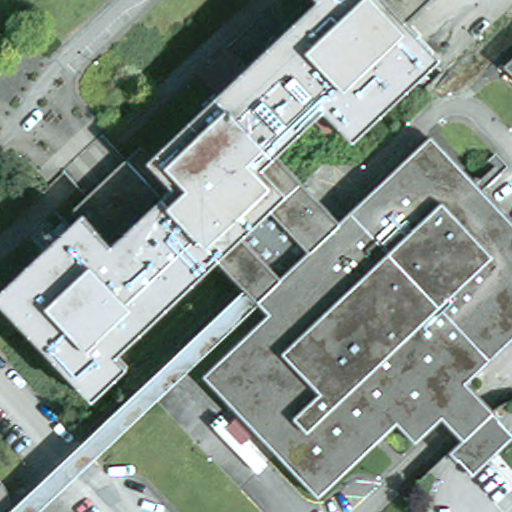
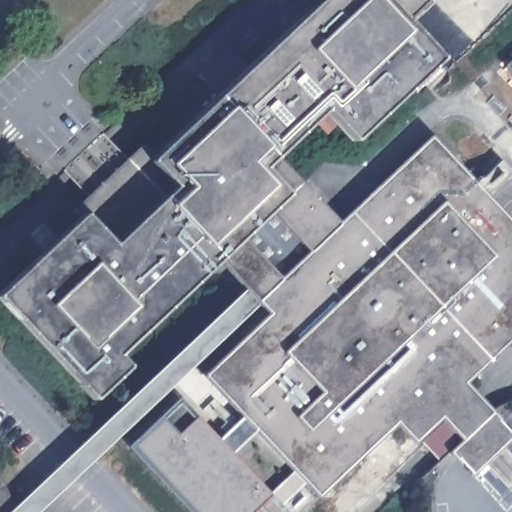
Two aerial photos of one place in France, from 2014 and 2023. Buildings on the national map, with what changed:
unchanged [(143,162),(315,0),(389,0),(406,18),(410,22),(434,48),(431,51),(349,129),(325,104),(274,151),(298,177),(219,254),(115,351),(127,363),(93,393),(18,314),(23,309),(7,291),(92,210),(143,162)]
unchanged [(389,0),(425,0),(406,18),(389,0)]
unchanged [(512,60),(512,74),(505,66),(512,60)]
unchanged [(241,279),(219,254),(298,177),(339,219),(431,132),(512,218),(512,333),(465,378),(499,413),(512,426),(512,433),(489,454),(472,470),(453,449),(450,447),(463,434),(460,432),(446,417),(442,412),(416,436),(397,416),(319,491),(283,454),(205,371),(270,309),(265,304),(241,279)]
unchanged [(10,499),(241,279),(265,304),(39,512),(12,512),(8,508),(10,503),(10,499)]
new [(231,454),(285,512),(191,512),(129,447),(179,399),(217,441),(245,414),(259,428),(231,454)]
unchanged [(3,479),(10,489),(10,499),(10,503),(8,508),(12,512),(0,512),(0,476),(3,479)]

